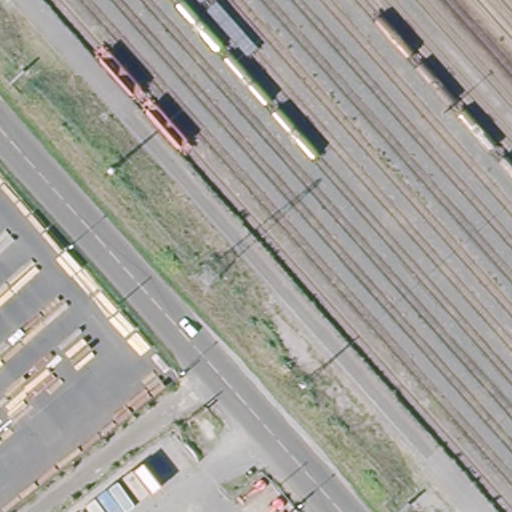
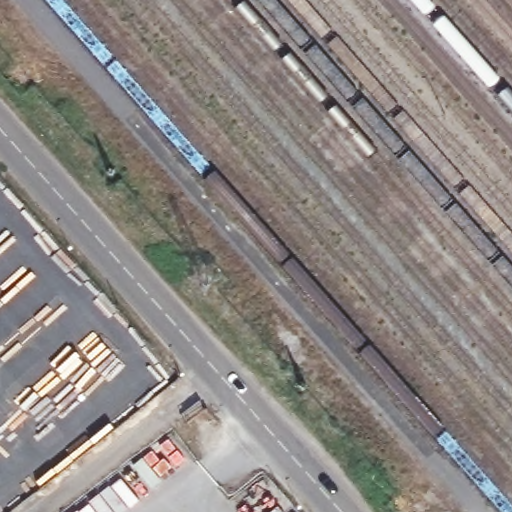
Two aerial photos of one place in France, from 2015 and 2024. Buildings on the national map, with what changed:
[]

